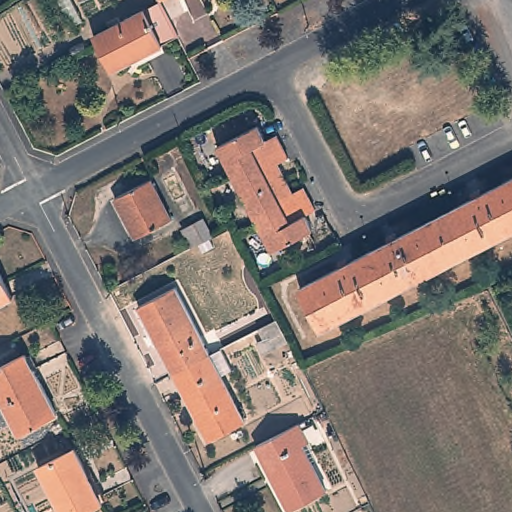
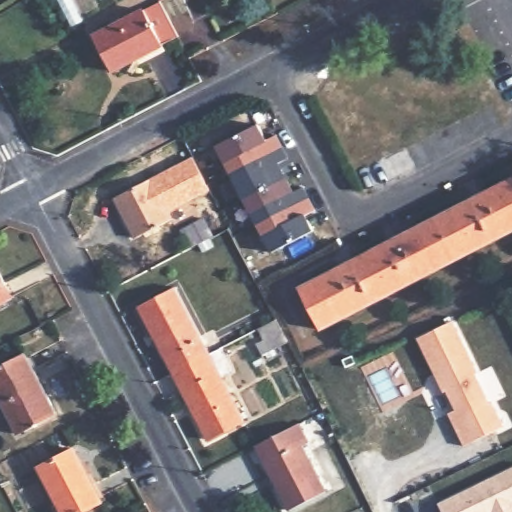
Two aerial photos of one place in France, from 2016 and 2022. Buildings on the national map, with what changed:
unchanged [(163,44),(114,70),(95,34),(145,9),(163,44)]
unchanged [(276,132),(284,147),(231,174),(217,147),(258,126),(264,138),(276,132)]
unchanged [(289,157),(278,164),(286,178),(244,200),(231,174),(284,147),(289,157)]
unchanged [(324,332),(303,292),(512,176),(512,231),(324,332)]
unchanged [(292,191),(304,187),(311,199),(257,226),(244,200),(286,178),(292,191)]
unchanged [(173,223),(140,241),(117,201),(152,182),(173,223)]
unchanged [(317,211),(306,217),(313,230),(271,252),(257,226),(311,199),(317,211)]
unchanged [(0,305),(0,282),(10,300),(0,305)]
unchanged [(137,305),(172,286),(209,353),(172,372),(137,305)]
new [(452,321),(478,374),(474,376),(488,406),(493,403),(504,427),(465,447),(448,412),(455,408),(447,392),(443,393),(416,339),(452,321)]
unchanged [(200,459),(186,442),(205,432),(172,372),(209,353),(219,348),(229,367),(219,373),(240,413),(230,420),(239,439),(200,459)]
unchanged [(15,435),(0,407),(0,372),(25,359),(53,416),(15,435)]
unchanged [(301,425),(308,439),(301,442),(327,492),(290,512),(256,447),(301,425)]
unchanged [(87,512),(53,512),(50,508),(61,502),(40,461),(76,443),(98,482),(97,507),(87,512)]
new [(512,467),(512,512),(443,512),(439,503),(512,467)]

